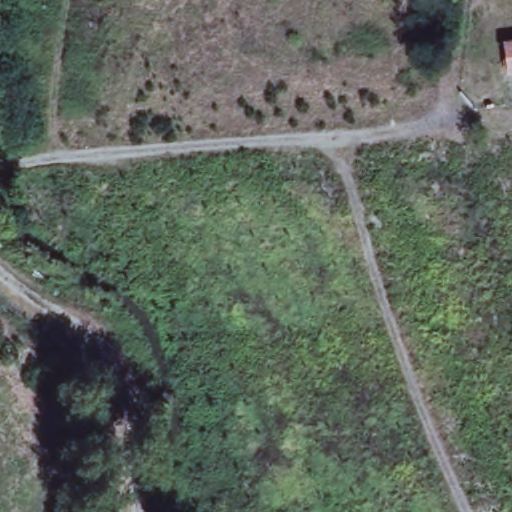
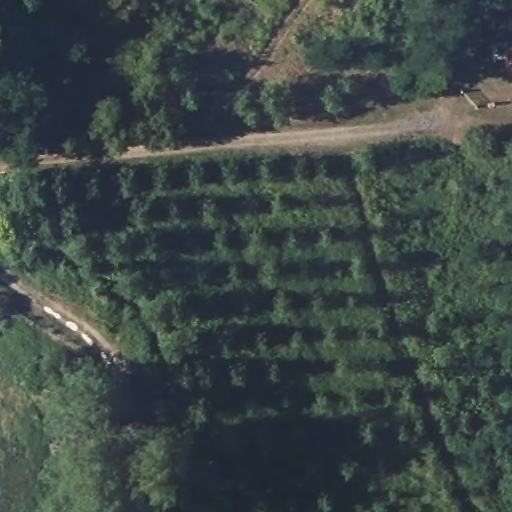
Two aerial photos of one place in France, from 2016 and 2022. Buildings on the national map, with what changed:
unchanged [(512,44),(512,72),(507,45),(512,44)]

